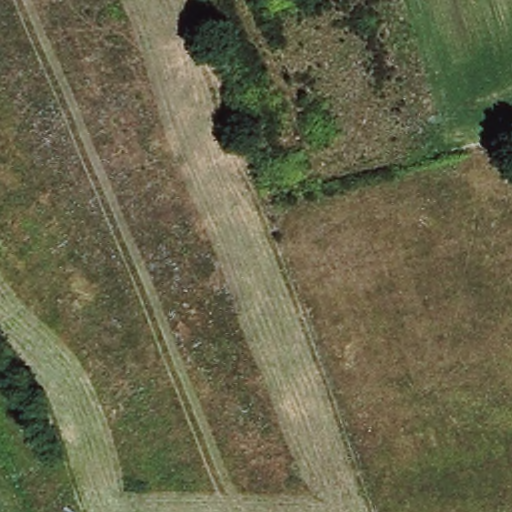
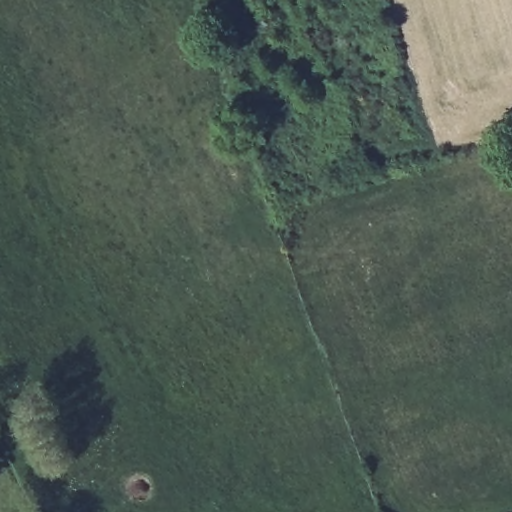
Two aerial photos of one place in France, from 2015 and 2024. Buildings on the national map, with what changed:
[]

